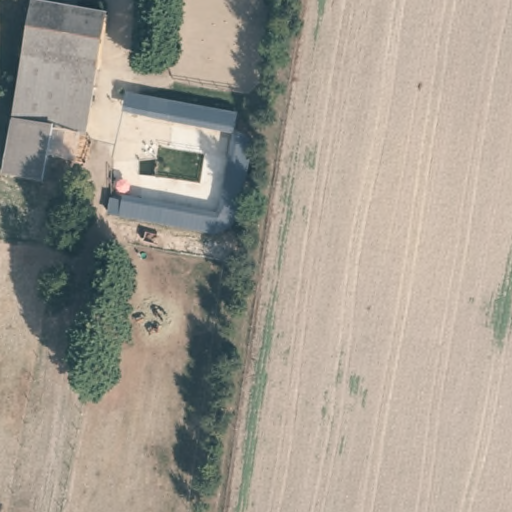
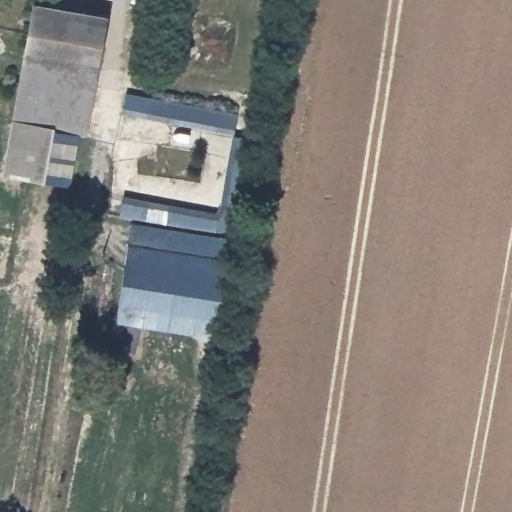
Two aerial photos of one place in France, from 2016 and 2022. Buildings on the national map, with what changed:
unchanged [(26,57),(35,6),(106,20),(98,70),(26,57)]
unchanged [(87,133),(55,127),(15,119),(26,57),(98,70),(87,133)]
unchanged [(234,132),(122,112),(126,94),(235,112),(234,132)]
unchanged [(15,119),(55,127),(53,135),(44,181),(6,173),(15,125),(15,119)]
unchanged [(235,223),(215,235),(111,216),(116,197),(214,212),(220,204),(233,135),(251,138),(235,223)]
new [(240,224),(221,337),(114,321),(131,219),(215,235),(235,223),(240,224)]

